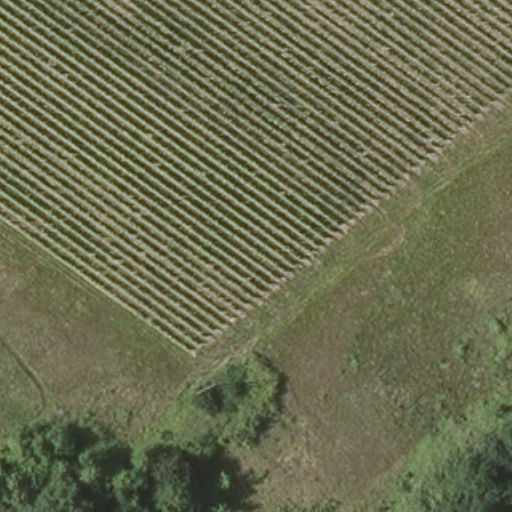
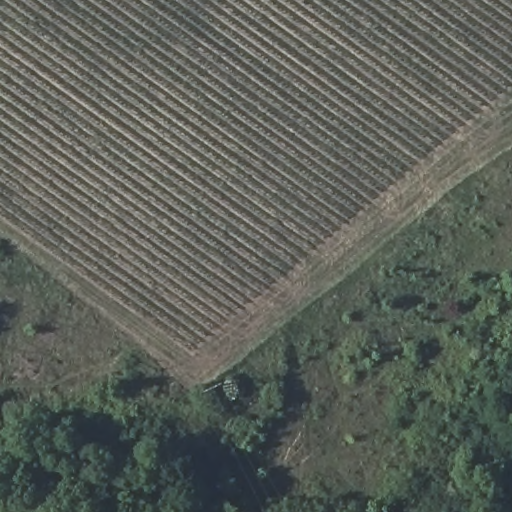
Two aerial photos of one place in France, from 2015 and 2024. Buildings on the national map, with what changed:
[]

